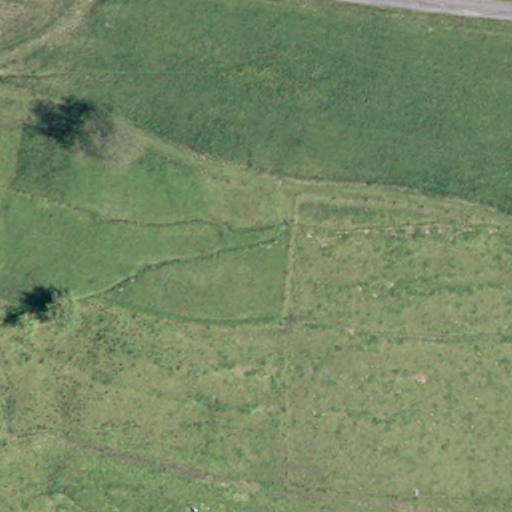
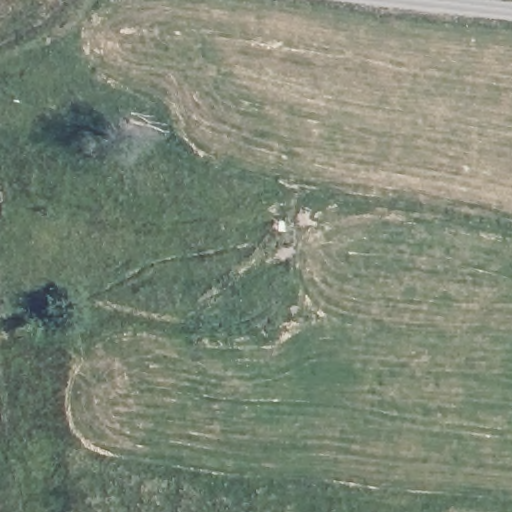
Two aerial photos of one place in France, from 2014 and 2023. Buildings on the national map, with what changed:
[]

